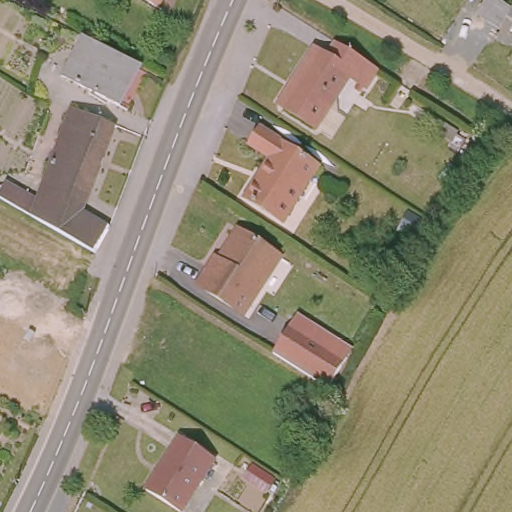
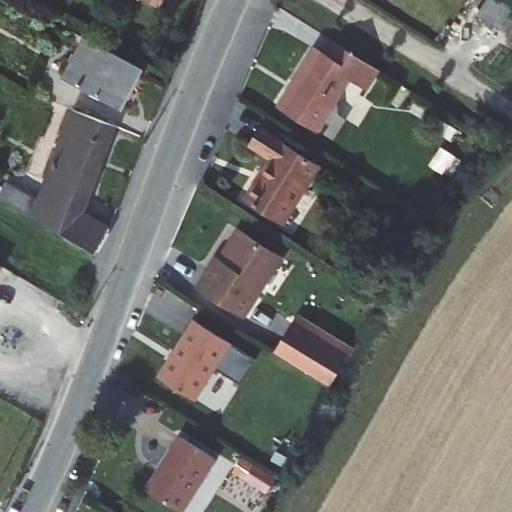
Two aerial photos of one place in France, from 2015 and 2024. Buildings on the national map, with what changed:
unchanged [(158,8),(145,0),(162,0),(158,8)]
unchanged [(512,12),(499,32),(485,23),(479,19),(491,0),(496,0),(499,2),(512,10),(512,12)]
unchanged [(141,68),(120,106),(64,76),(83,42),(141,68)]
unchanged [(373,82),(368,90),(356,82),(321,135),(291,114),(304,94),(296,89),(315,59),(327,64),(333,57),(373,82)]
unchanged [(114,121),(84,217),(33,202),(68,106),(114,121)]
unchanged [(322,165),(286,222),(248,197),(271,158),(253,146),(263,129),(322,165)]
unchanged [(33,202),(84,217),(108,230),(90,253),(0,202),(0,189),(3,185),(33,202)]
unchanged [(276,255),(258,284),(264,289),(247,317),(198,286),(213,261),(218,263),(237,232),(276,255)]
unchanged [(328,386),(274,351),(297,314),(301,307),(356,342),(351,349),(329,386),(328,386)]
new [(196,319),(256,358),(241,382),(214,366),(195,395),(161,374),(196,319)]
unchanged [(213,454),(177,510),(141,488),(176,433),(213,454)]

